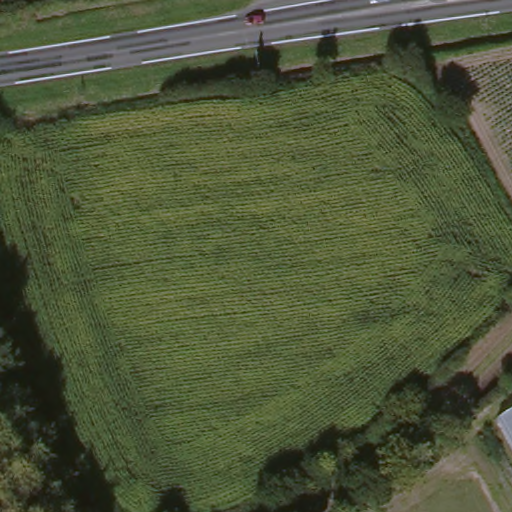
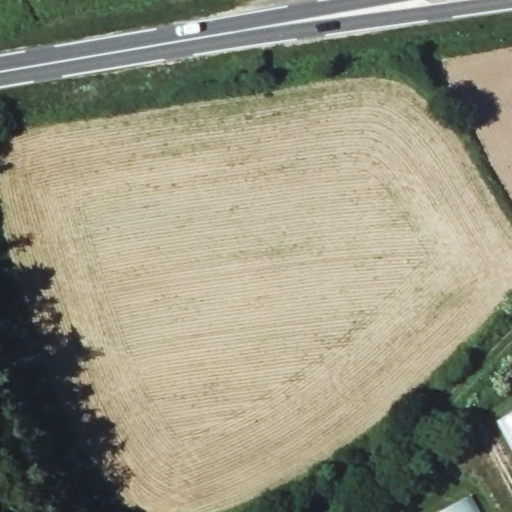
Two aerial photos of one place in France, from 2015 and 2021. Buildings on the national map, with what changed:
unchanged [(512,416),(512,461),(493,427),(512,416)]
new [(468,496),(477,512),(438,512),(468,496)]
demolished [(488,512),(464,512),(483,502),(488,512)]

